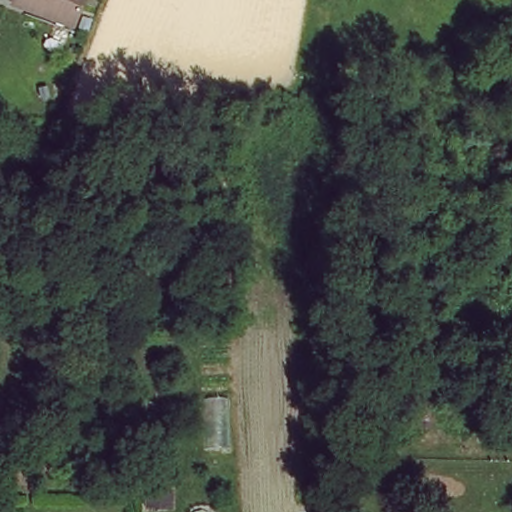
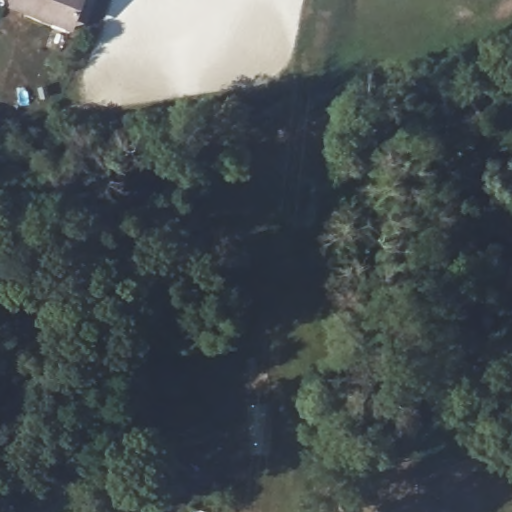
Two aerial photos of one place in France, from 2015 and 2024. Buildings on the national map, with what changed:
unchanged [(77,18),(49,8),(47,12),(15,1),(15,0),(83,0),(77,18)]

